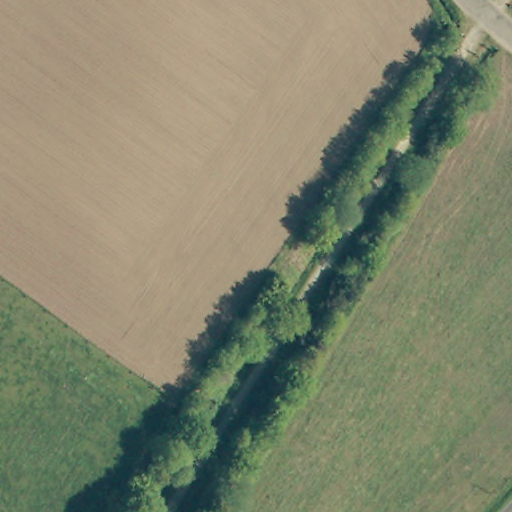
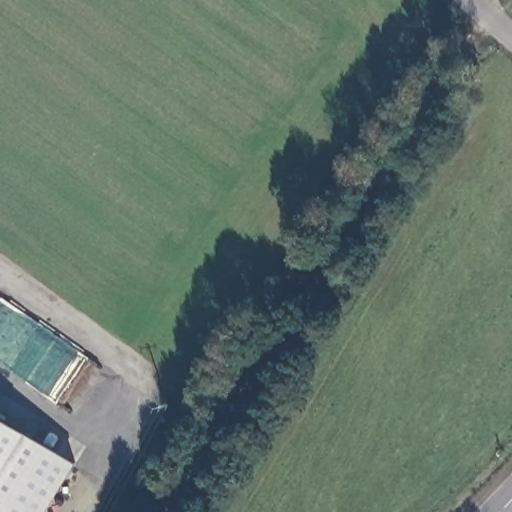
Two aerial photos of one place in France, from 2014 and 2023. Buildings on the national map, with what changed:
new [(49,512),(0,512),(0,414),(79,463),(49,512)]

